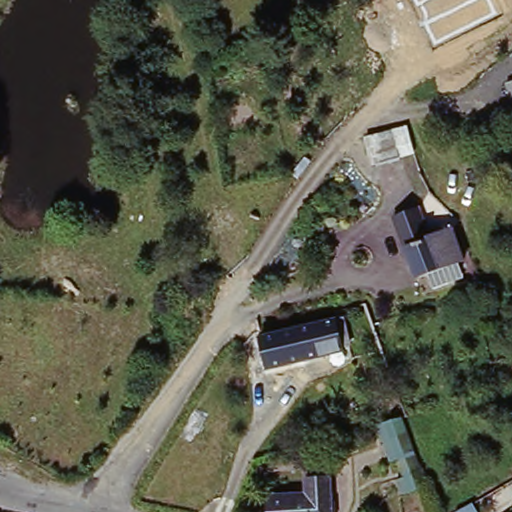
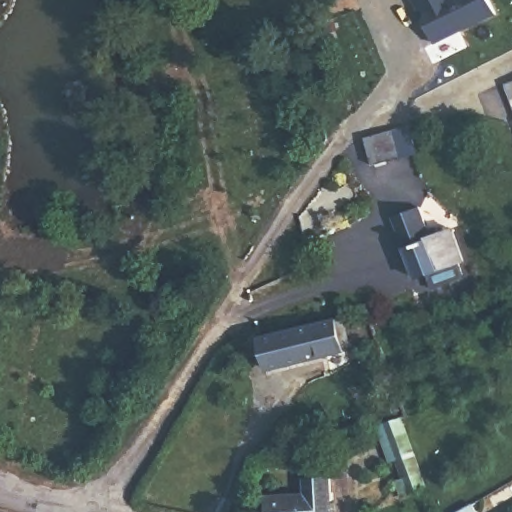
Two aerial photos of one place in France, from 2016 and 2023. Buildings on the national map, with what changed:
new [(414,0),(488,0),(495,14),(433,44),(423,22),(424,20),(416,5),(414,0)]
unchanged [(401,127),(406,157),(371,166),(366,136),(401,127)]
unchanged [(425,211),(435,235),(453,233),(460,266),(415,277),(400,217),(425,211)]
unchanged [(340,318),(346,345),(338,347),(337,353),(266,367),(258,335),(340,318)]
unchanged [(401,416),(427,486),(407,493),(401,477),(410,474),(404,457),(396,458),(384,420),(401,416)]
unchanged [(309,480),(332,481),(333,512),(272,512),(271,500),(310,497),(309,480)]
unchanged [(471,512),(451,512),(466,504),(471,512)]

